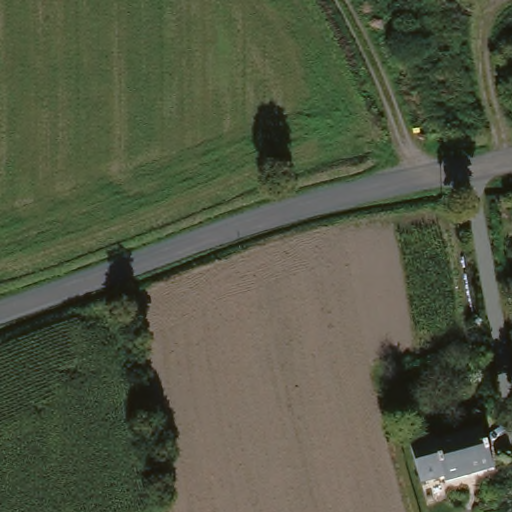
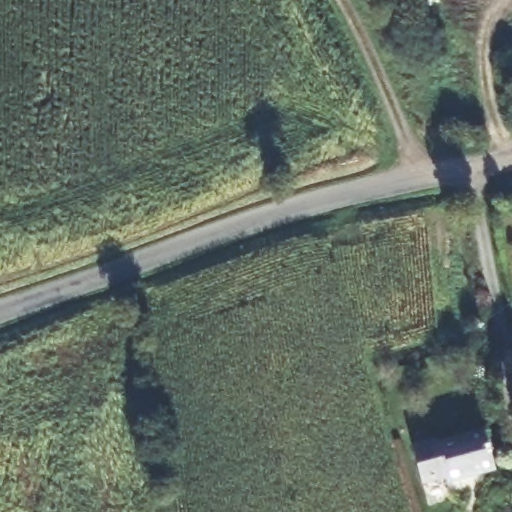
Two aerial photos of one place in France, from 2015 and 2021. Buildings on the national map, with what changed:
unchanged [(491,478),(445,491),(442,483),(421,489),(406,450),(430,442),(434,452),(480,435),(491,478)]

